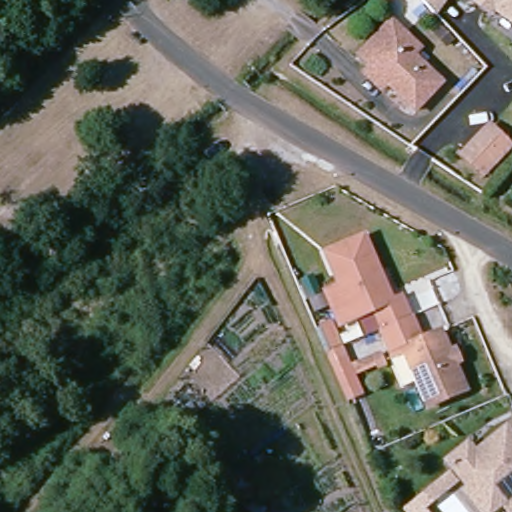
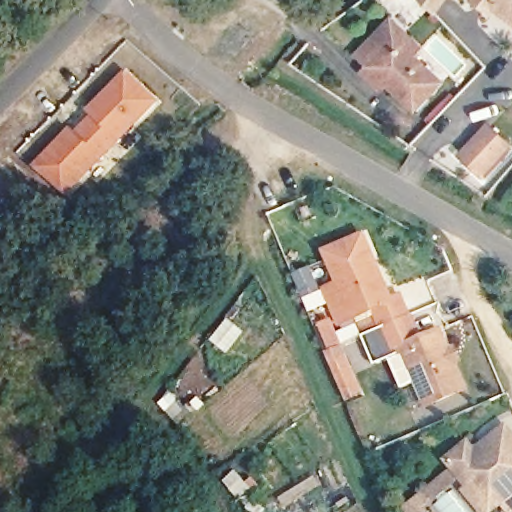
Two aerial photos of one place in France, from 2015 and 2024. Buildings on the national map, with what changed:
unchanged [(435,11),(424,0),(443,0),(435,11)]
unchanged [(475,2),(477,0),(512,0),(512,20),(492,5),(488,12),(475,2)]
unchanged [(348,77),(356,70),(387,36),(405,52),(397,60),(426,86),(401,112),(372,86),(365,93),(348,77)]
new [(70,196),(35,167),(73,128),(77,132),(92,117),(88,113),(129,71),(161,102),(70,196)]
unchanged [(512,150),(512,152),(488,178),(467,158),(492,131),(512,150)]
unchanged [(332,296),(347,290),(332,256),(370,240),(397,305),(407,300),(416,320),(387,332),(368,340),(360,322),(347,328),(332,296)]
unchanged [(398,361),(387,332),(416,320),(426,343),(446,334),(455,354),(459,353),(464,364),(460,366),(472,392),(433,410),(422,383),(410,388),(398,361)]
unchanged [(343,351),(352,374),(357,372),(367,396),(353,402),(333,355),(343,351)]
unchanged [(501,511),(489,498),(492,496),(481,483),(471,491),(449,466),(470,448),(477,457),(507,431),(512,437),(512,502),(501,511)]

